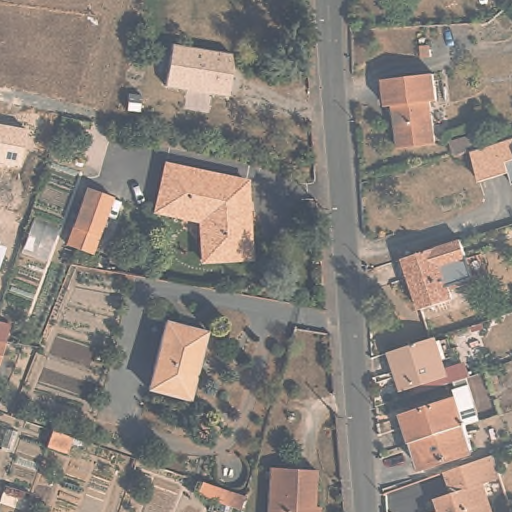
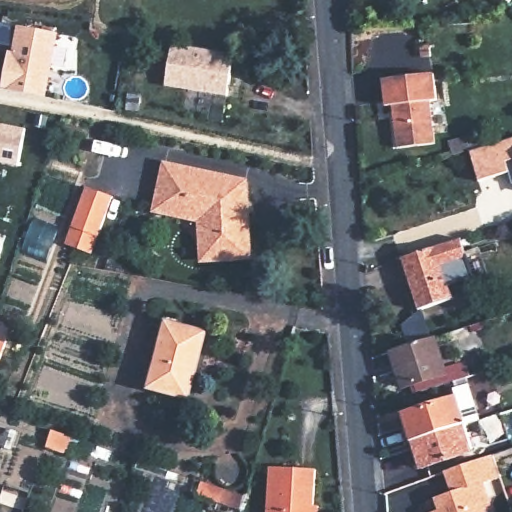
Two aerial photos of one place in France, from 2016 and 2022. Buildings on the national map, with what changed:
new [(58,35),(46,96),(0,89),(6,50),(11,50),(12,45),(0,42),(0,24),(16,27),(58,35)]
unchanged [(232,54),(229,96),(165,87),(173,45),(232,54)]
unchanged [(428,72),(430,100),(424,100),(429,144),(390,147),(387,116),(391,116),(390,104),(380,105),(378,77),(428,72)]
unchanged [(19,169),(0,165),(0,125),(27,130),(19,169)]
unchanged [(491,144),(458,154),(453,137),(487,127),(491,144)]
unchanged [(512,137),(512,172),(480,180),(471,151),(491,144),(512,137)]
unchanged [(242,181),(245,258),(196,258),(195,234),(197,234),(197,217),(181,212),(180,215),(151,209),(161,161),(242,181)]
unchanged [(108,207),(94,247),(76,240),(69,238),(83,198),(89,200),(108,207)]
unchanged [(460,240),(466,265),(446,271),(453,293),(414,307),(399,257),(460,240)]
unchanged [(0,248),(1,248),(0,251),(0,248)]
unchanged [(204,331),(187,399),(146,388),(163,320),(204,331)]
unchanged [(5,367),(0,365),(0,335),(16,338),(5,367)]
unchanged [(399,392),(386,355),(431,340),(445,377),(399,392)]
unchanged [(401,418),(451,401),(460,428),(409,445),(401,418)]
unchanged [(58,428),(78,435),(73,451),(53,443),(58,428)]
unchanged [(417,472),(409,445),(460,428),(469,455),(417,472)]
unchanged [(500,476),(482,482),(492,512),(441,512),(435,497),(452,491),(445,470),(492,453),(500,476)]
unchanged [(317,471),(314,512),(270,512),(273,469),(317,471)]
unchanged [(249,510),(224,500),(208,495),(212,482),(228,488),(253,496),(249,510)]

